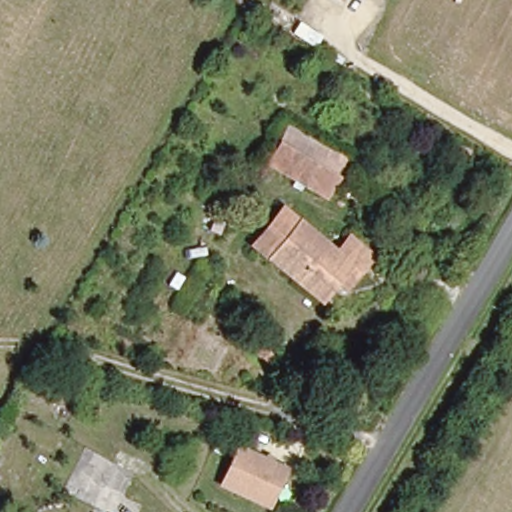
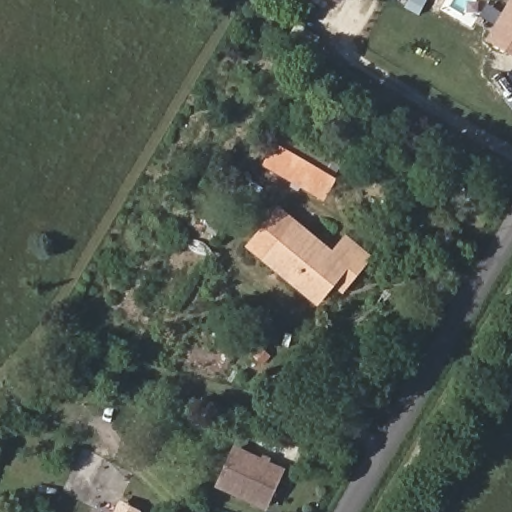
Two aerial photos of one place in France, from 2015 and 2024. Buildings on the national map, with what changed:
new [(481,16),(488,5),(502,13),(510,0),(512,0),(512,56),(486,41),(495,25),(481,16)]
unchanged [(324,200),(262,166),(277,142),(286,125),(301,134),(292,151),(338,179),(324,200)]
unchanged [(345,262),(320,300),(247,246),(272,209),(332,252),(343,237),(367,255),(357,270),(345,262)]
unchanged [(236,447),(286,470),(265,511),(216,487),(236,447)]
unchanged [(93,512),(87,512),(88,510),(93,512)]

